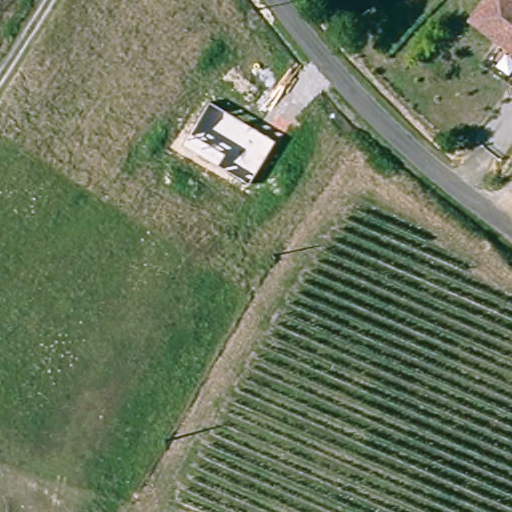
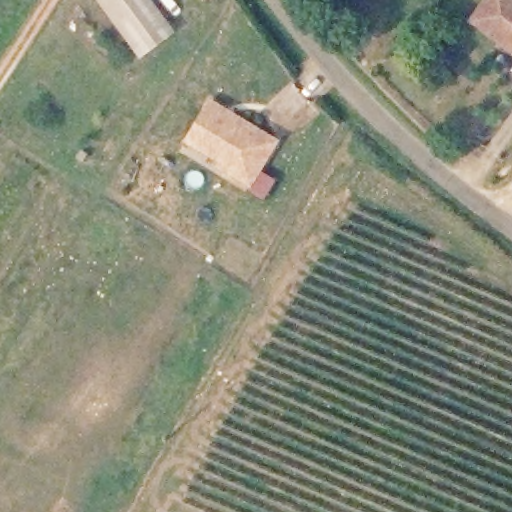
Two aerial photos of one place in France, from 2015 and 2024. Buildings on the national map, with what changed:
new [(139,60),(95,0),(151,0),(176,34),(139,60)]
unchanged [(470,16),(482,0),(512,0),(512,49),(500,39),(470,16)]
unchanged [(211,98),(276,139),(250,182),(219,162),(221,157),(189,137),(192,131),(211,98)]

